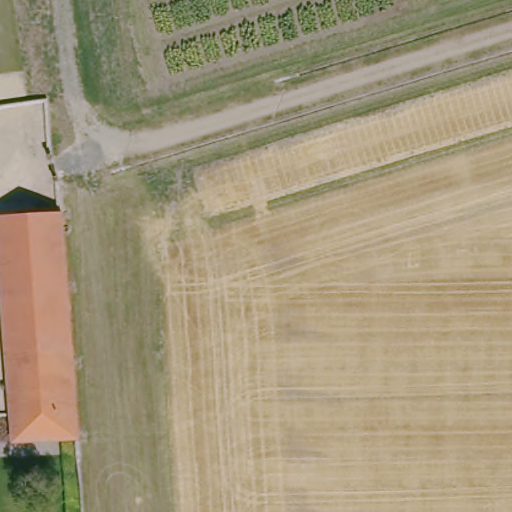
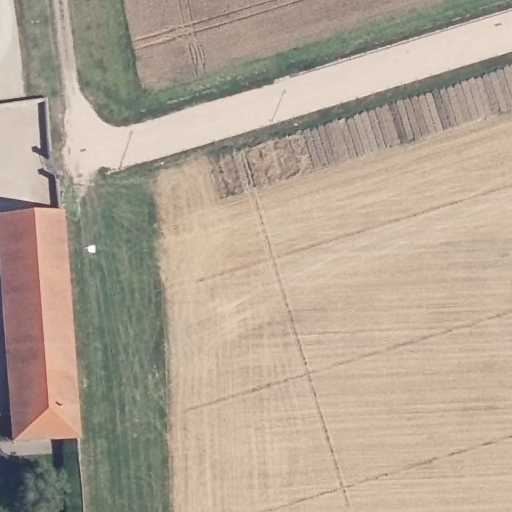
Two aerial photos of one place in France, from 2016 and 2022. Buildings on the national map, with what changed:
unchanged [(0,295),(0,216),(55,211),(57,221),(59,240),(75,440),(13,444),(0,295)]

